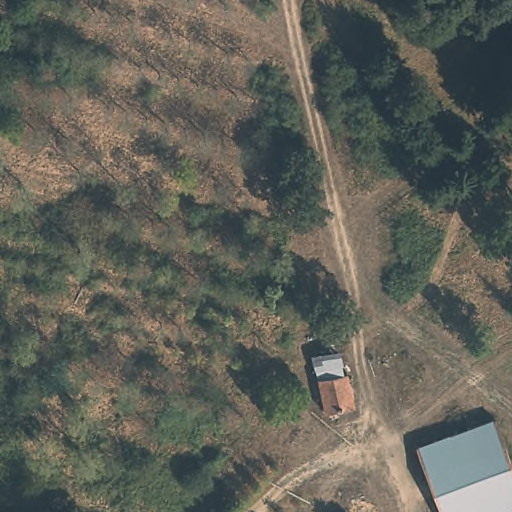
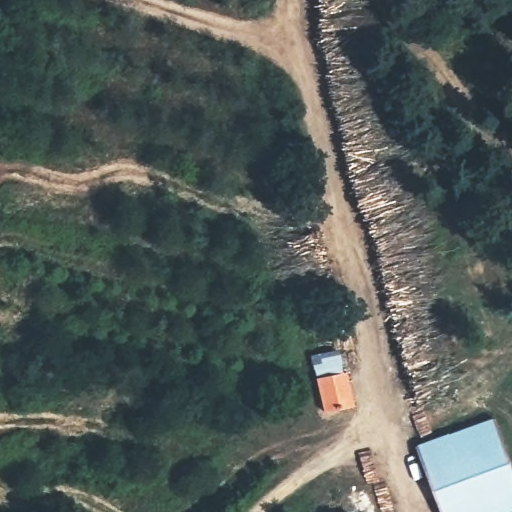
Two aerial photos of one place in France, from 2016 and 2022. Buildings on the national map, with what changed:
unchanged [(317,378),(312,355),(338,349),(343,372),(346,372),(355,406),(325,412),(317,378)]
unchanged [(452,436),(500,418),(512,451),(512,511),(509,512),(445,512),(420,447),(452,435),(452,436)]

